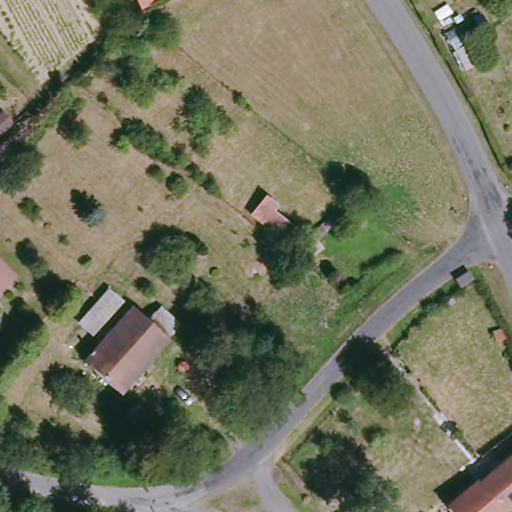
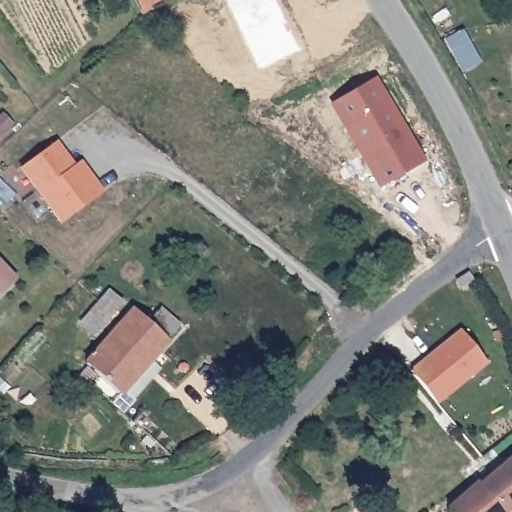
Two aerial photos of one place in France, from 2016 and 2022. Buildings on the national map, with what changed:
unchanged [(471,70),(451,35),(464,27),(485,62),(471,70)]
new [(424,158),(382,184),(332,104),(375,78),(424,158)]
new [(58,140),(88,182),(94,178),(104,192),(62,222),(22,166),(58,140)]
new [(82,160),(94,178),(88,182),(76,165),(82,160)]
unchanged [(16,279),(0,294),(0,263),(16,279)]
unchanged [(81,323),(109,293),(121,304),(93,334),(81,323)]
unchanged [(90,362),(139,308),(153,321),(164,310),(183,327),(173,340),(125,394),(90,362)]
new [(486,361),(435,402),(409,370),(460,329),(486,361)]
unchanged [(445,512),(443,509),(471,481),(475,484),(512,454),(512,502),(500,512),(445,512)]
unchanged [(359,498),(371,477),(392,488),(388,495),(395,498),(388,511),(359,498)]

